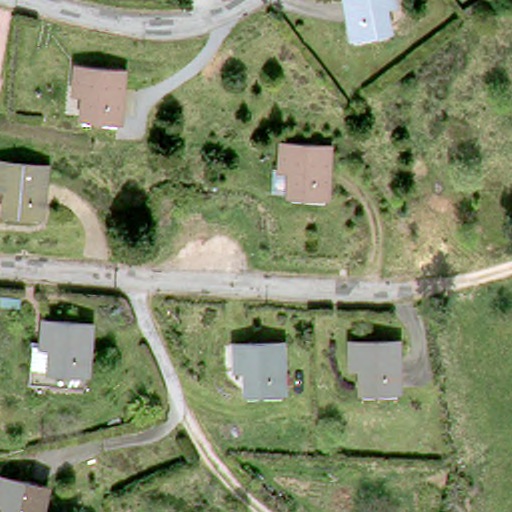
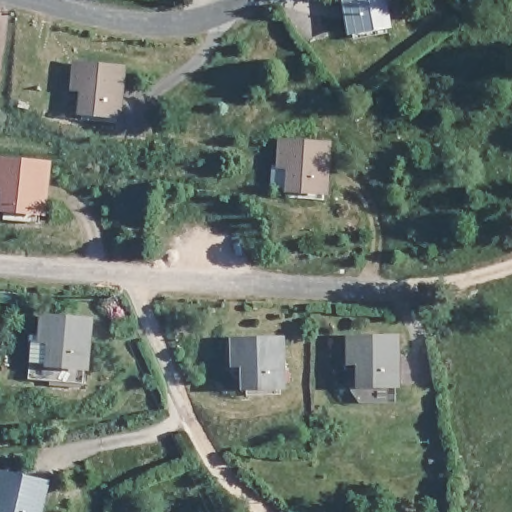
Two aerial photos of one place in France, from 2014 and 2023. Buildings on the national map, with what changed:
unchanged [(391,2),(382,4),(386,26),(351,32),(345,0),(391,0),(391,2)]
unchanged [(117,120),(82,118),(84,93),(75,93),(75,67),(120,70),(117,120)]
unchanged [(326,194),(284,187),(283,176),(286,142),(329,146),(326,194)]
unchanged [(10,208),(11,187),(4,186),(5,162),(51,166),(47,210),(10,208)]
unchanged [(97,321),(92,371),(89,371),(87,385),(34,379),(38,339),(51,340),(52,317),(97,321)]
unchanged [(284,387),(249,385),(250,361),(237,361),(238,338),(286,340),(284,387)]
unchanged [(399,387),(360,386),(360,364),(350,364),(350,338),(400,339),(399,387)]
unchanged [(0,512),(2,503),(0,502),(0,477),(1,475),(46,487),(40,512),(0,512)]

